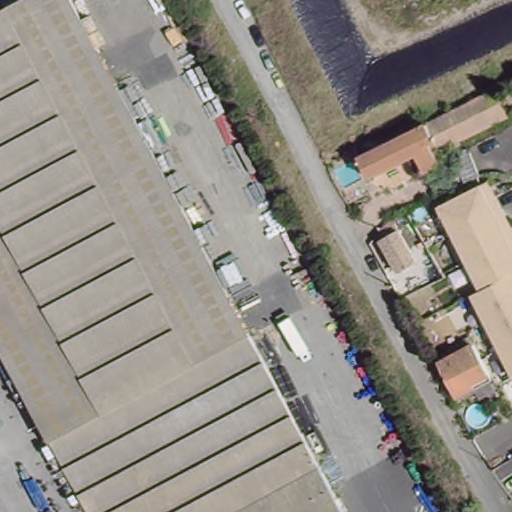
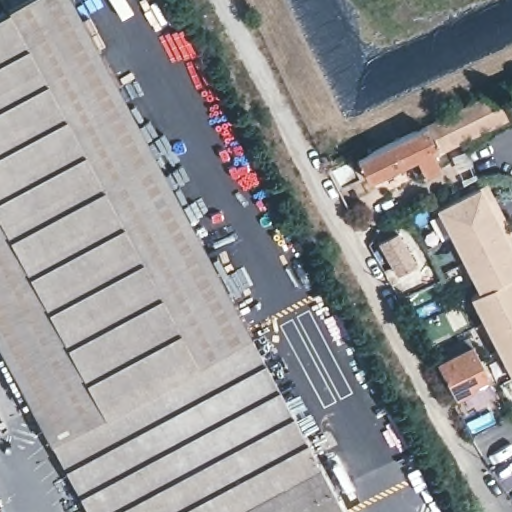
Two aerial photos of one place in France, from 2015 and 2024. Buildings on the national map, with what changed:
unchanged [(89,512),(0,343),(0,18),(34,0),(75,0),(346,512),(89,512)]
unchanged [(419,127),(477,99),(487,119),(428,147),(419,127)]
unchanged [(436,165),(416,175),(407,157),(367,177),(356,157),(419,127),(428,147),(436,165)]
unchanged [(485,180),(512,237),(512,376),(471,294),(480,289),(437,204),(485,180)]
unchanged [(394,278),(376,244),(396,234),(413,267),(394,278)]
unchanged [(437,366),(472,348),(489,381),(455,399),(437,366)]

